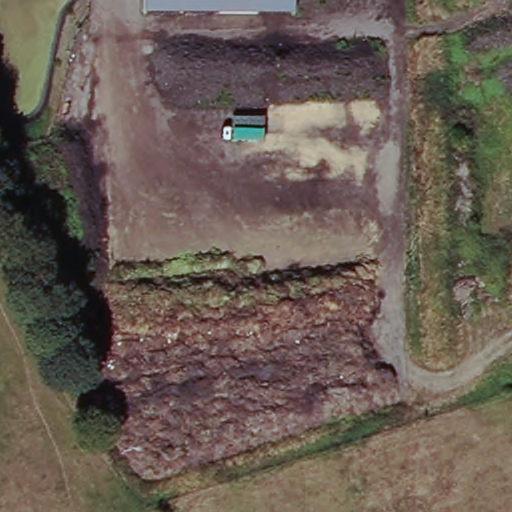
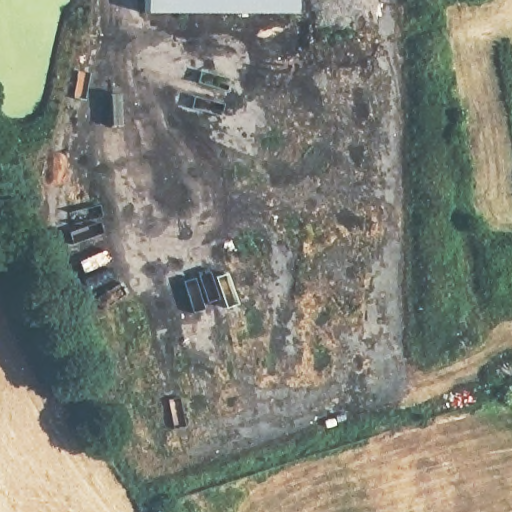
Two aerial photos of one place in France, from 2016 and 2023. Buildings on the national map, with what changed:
unchanged [(297,0),(297,15),(144,12),(145,0),(297,0)]

